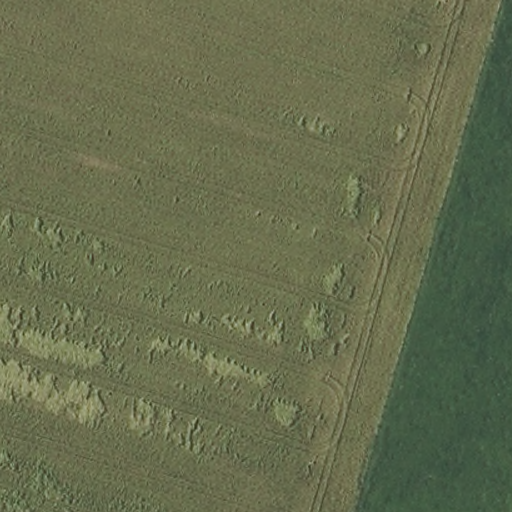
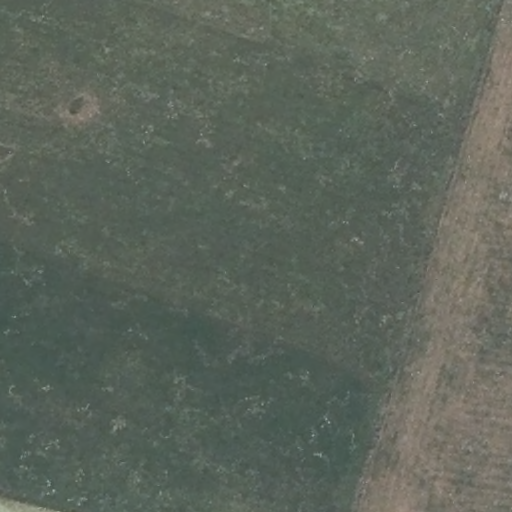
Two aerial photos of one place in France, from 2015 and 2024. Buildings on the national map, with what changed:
[]

